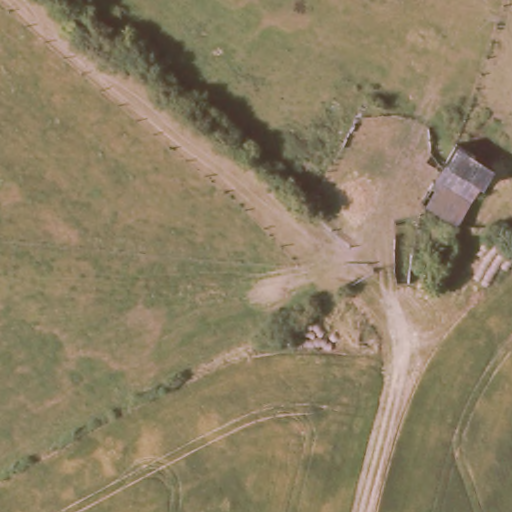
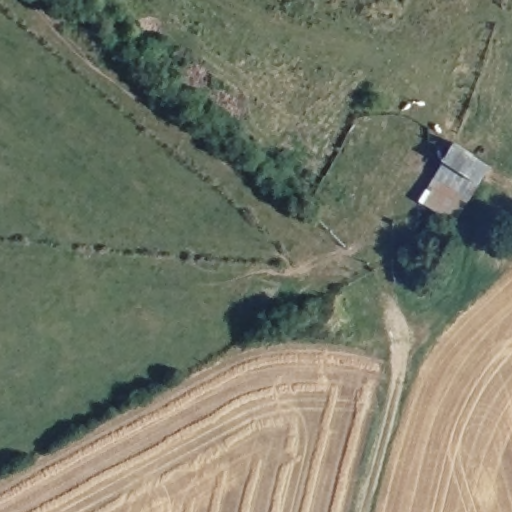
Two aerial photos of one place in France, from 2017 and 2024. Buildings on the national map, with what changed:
unchanged [(450,164),(460,143),(494,163),(478,185),(459,227),(422,204),(450,164)]

